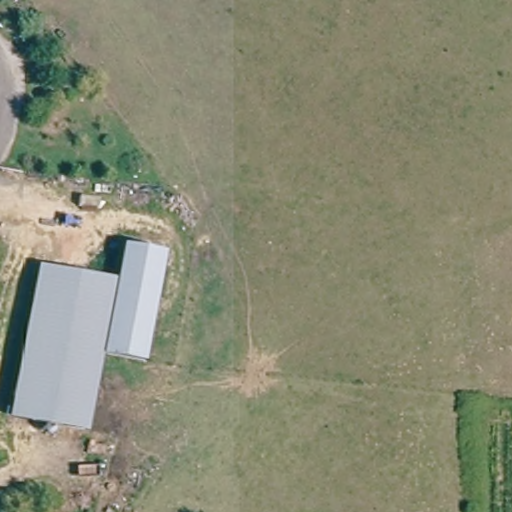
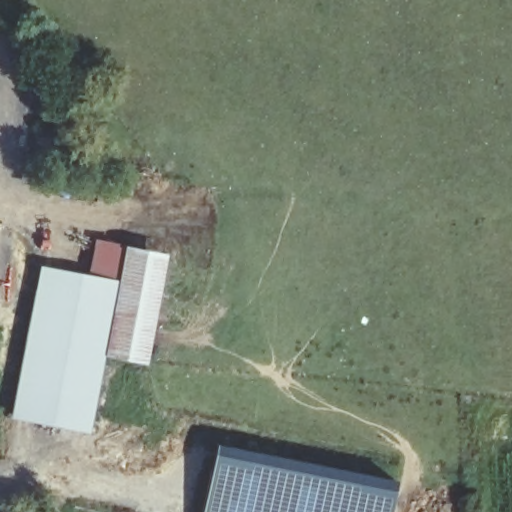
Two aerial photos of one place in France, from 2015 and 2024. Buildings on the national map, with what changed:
unchanged [(169,254),(148,363),(105,355),(91,433),(12,418),(42,267),(92,275),(98,241),(169,254)]
new [(395,479),(389,512),(204,512),(217,444),(395,479)]

